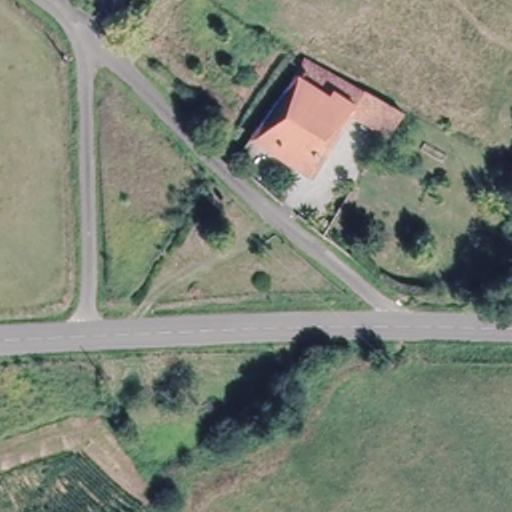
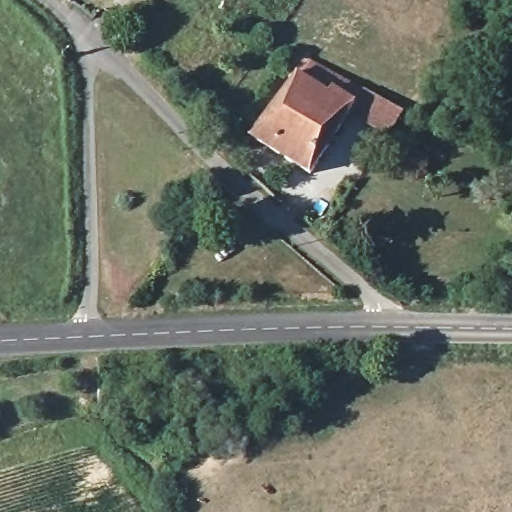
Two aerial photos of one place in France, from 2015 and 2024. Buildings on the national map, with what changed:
unchanged [(366,90),(350,115),(311,177),(255,137),(311,57),(366,90)]
unchanged [(383,136),(350,115),(366,90),(400,109),(383,136)]

